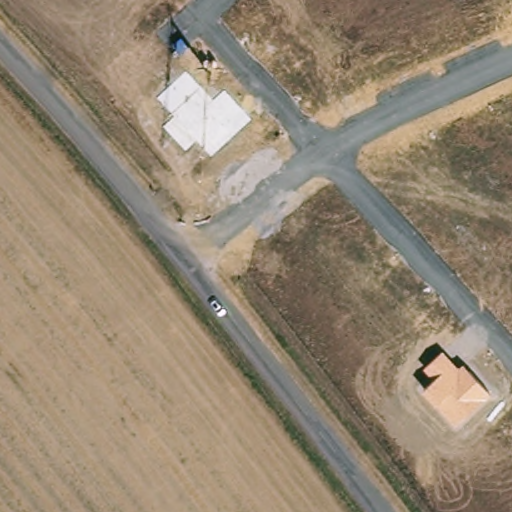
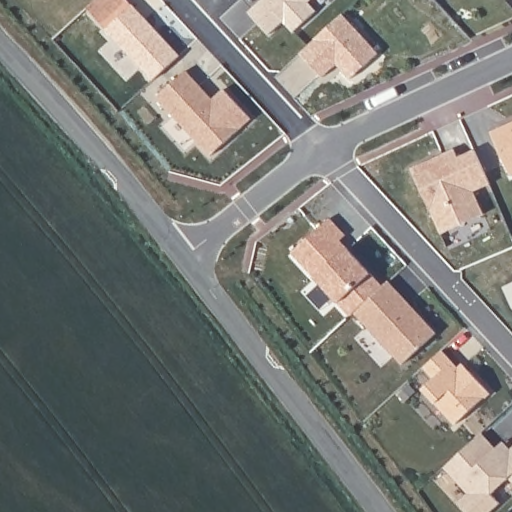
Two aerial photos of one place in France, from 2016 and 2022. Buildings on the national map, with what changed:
new [(316,11),(293,33),(282,22),(268,36),(247,12),(261,0),(312,0),(309,2),(316,11)]
new [(181,55),(153,81),(105,29),(133,4),(181,55)]
new [(342,14),(379,53),(351,79),(337,64),(322,77),(300,53),(342,14)]
new [(200,86),(213,100),(224,90),(251,119),(211,156),(157,98),(186,71),(200,86)]
new [(512,175),(511,175),(491,132),(512,123),(512,175)]
new [(454,149),(458,157),(474,150),(490,184),(474,191),(484,214),(442,233),(412,168),(454,149)]
new [(292,252),(330,218),(345,235),(340,240),(348,248),(370,273),(383,286),(355,312),(351,315),(338,302),(316,278),(292,252)]
new [(383,286),(388,281),(437,333),(403,364),(355,312),(383,286)]
unchanged [(458,366),(462,362),(491,393),(456,426),(423,392),(434,380),(422,368),(443,350),(458,366)]
new [(503,456),(512,448),(512,480),(509,477),(491,494),(500,503),(490,512),(469,512),(459,501),(468,493),(444,467),(481,433),(503,456)]

